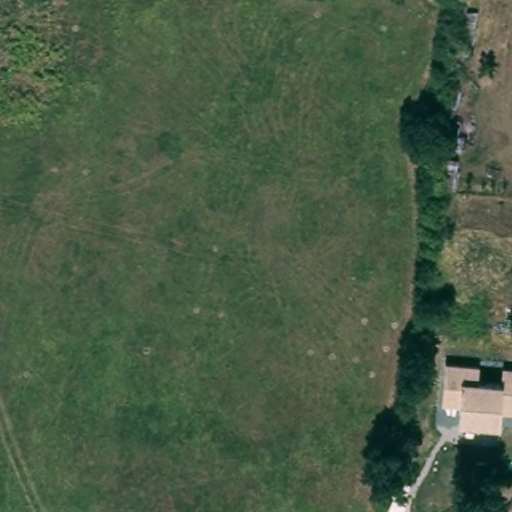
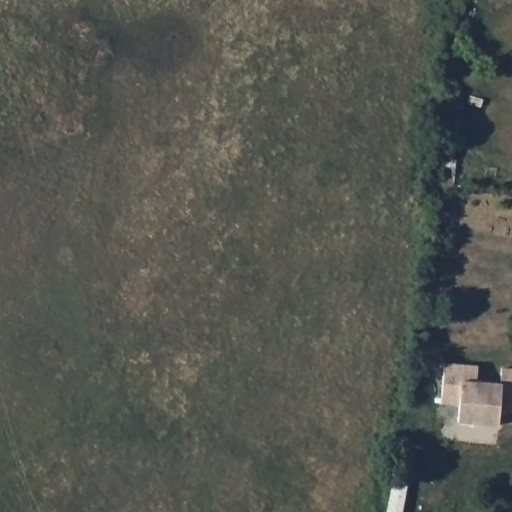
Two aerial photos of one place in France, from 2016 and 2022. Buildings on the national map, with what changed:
unchanged [(462,405),(441,403),(444,364),(478,365),(478,381),(500,384),(502,369),(512,369),(512,412),(501,412),(499,425),(459,422),(462,405)]

